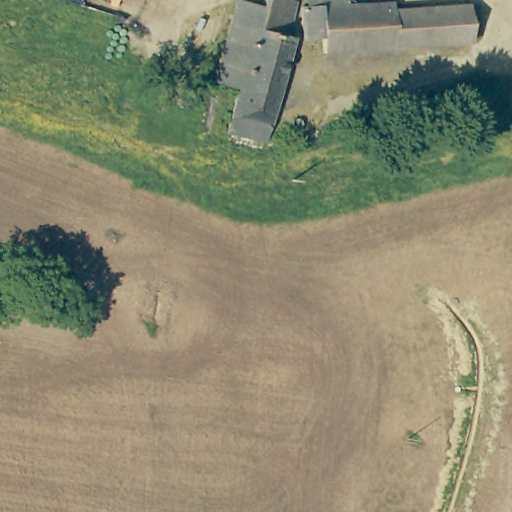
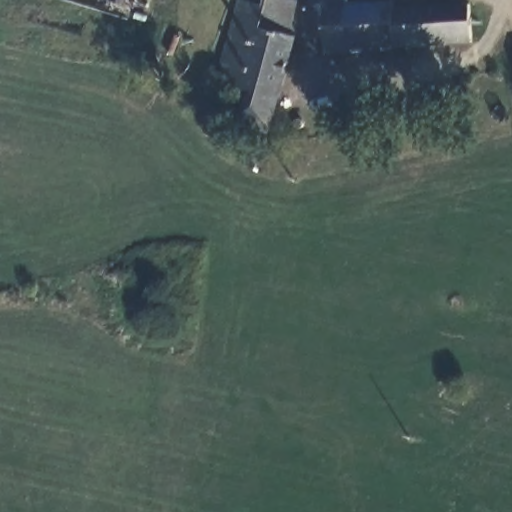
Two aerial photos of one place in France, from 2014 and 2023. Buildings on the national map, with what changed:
unchanged [(245,0),(263,5),(264,0),(292,0),(296,1),(287,34),(294,36),(265,141),(227,131),(239,90),(224,85),(216,83),(239,0),(245,0)]
unchanged [(323,37),(305,39),(302,8),(321,5),(320,0),(349,0),(349,3),(396,4),(396,11),(469,4),(471,43),(325,52),(323,37)]

